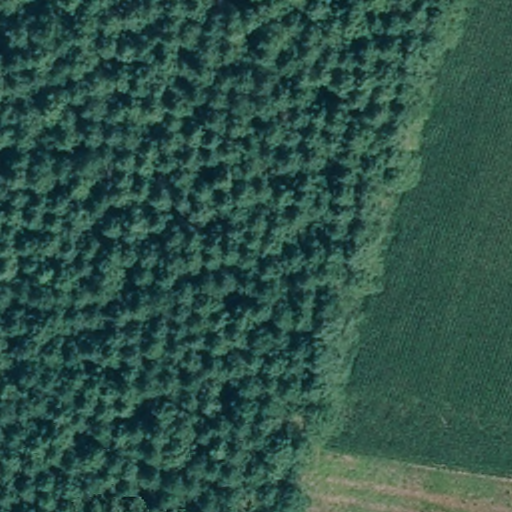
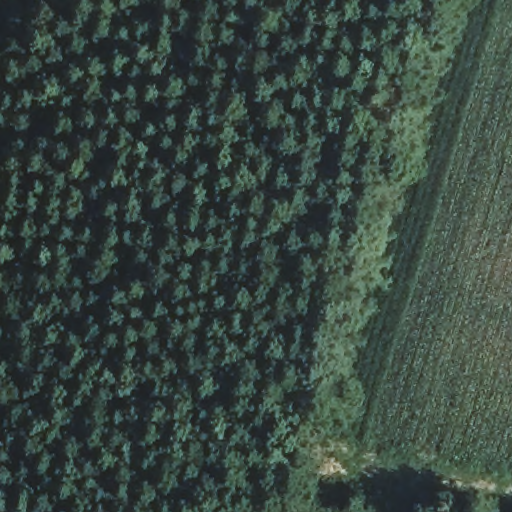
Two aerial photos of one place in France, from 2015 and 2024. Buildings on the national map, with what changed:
[]

